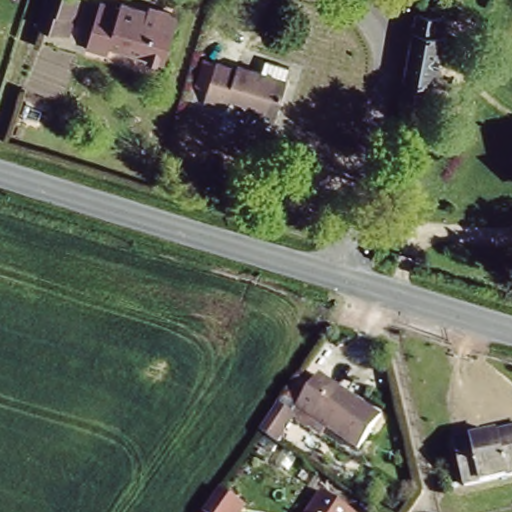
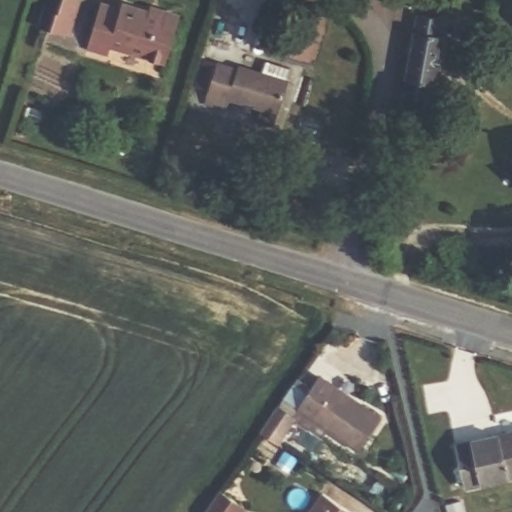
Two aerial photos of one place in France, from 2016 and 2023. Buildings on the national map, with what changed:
unchanged [(81,0),(78,12),(71,32),(42,22),(48,2),(48,0),(81,0)]
unchanged [(105,0),(122,6),(123,1),(158,12),(159,6),(179,12),(166,59),(112,42),(109,52),(89,45),(103,0),(105,0)]
unchanged [(419,16),(444,20),(441,37),(444,37),(436,85),(432,85),(429,102),(404,97),(419,16)]
unchanged [(217,65),(237,71),(238,67),(262,75),(266,62),(291,70),(287,82),(289,83),(274,126),(258,121),(261,110),(228,99),(224,111),(203,104),(217,65)]
unchanged [(382,421),(359,453),(297,411),(319,378),(382,421)]
unchanged [(294,421),(276,446),(260,435),(277,410),(294,421)]
unchanged [(512,477),(466,487),(457,447),(512,433),(512,477)]
unchanged [(248,505),(243,512),(201,512),(219,487),(248,505)]
unchanged [(323,495),(347,512),(311,512),(323,495)]

